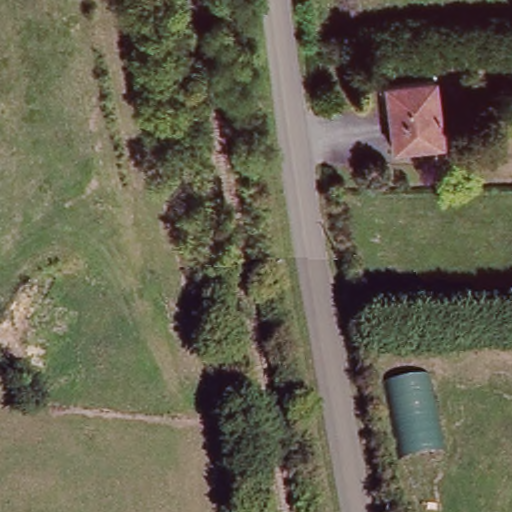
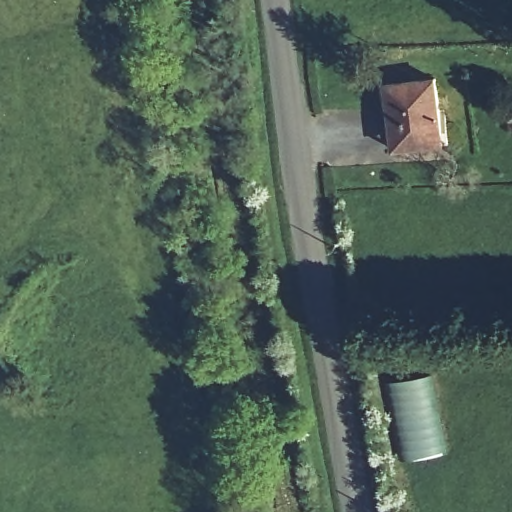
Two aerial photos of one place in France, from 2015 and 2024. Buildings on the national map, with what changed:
unchanged [(439,144),(391,150),(384,85),(432,80),(439,144)]
unchanged [(446,454),(404,463),(389,383),(429,376),(446,454)]

